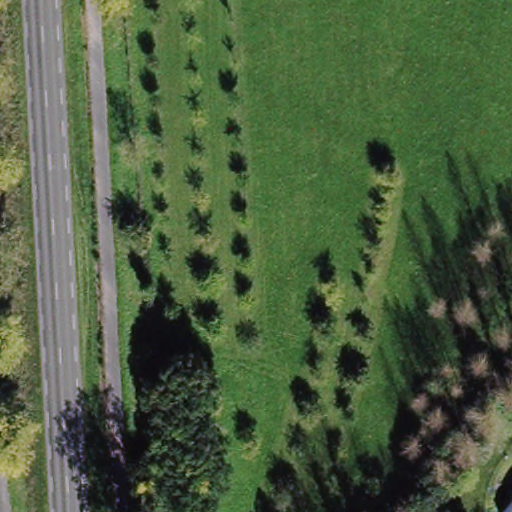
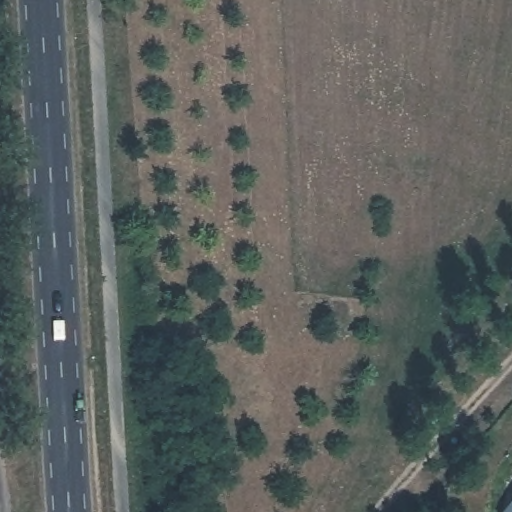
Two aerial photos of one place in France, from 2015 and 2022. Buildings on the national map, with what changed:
unchanged [(512,497),(512,504),(509,501),(512,497)]

